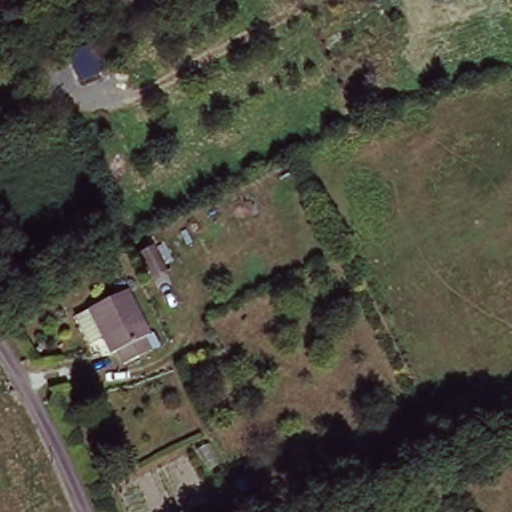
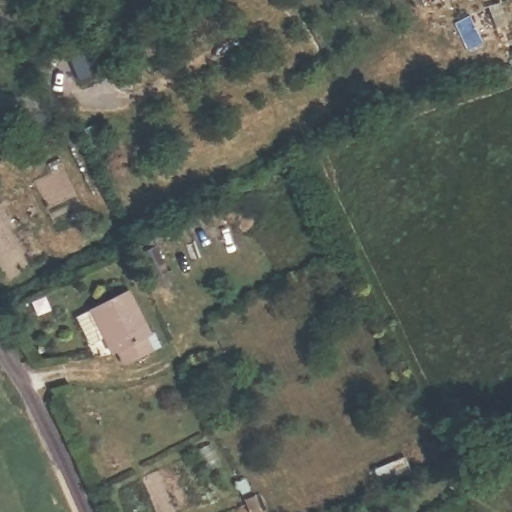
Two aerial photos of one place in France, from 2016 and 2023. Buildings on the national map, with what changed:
unchanged [(154,246),(166,271),(152,278),(140,252),(154,246)]
unchanged [(150,337),(154,335),(159,347),(124,364),(118,353),(110,355),(104,337),(90,344),(75,312),(90,306),(125,290),(150,337)]
unchanged [(401,457),(410,471),(394,480),(388,464),(401,457)]
unchanged [(240,480),(246,490),(240,495),(235,483),(240,480)]
unchanged [(259,512),(247,512),(241,500),(251,496),(259,512)]

